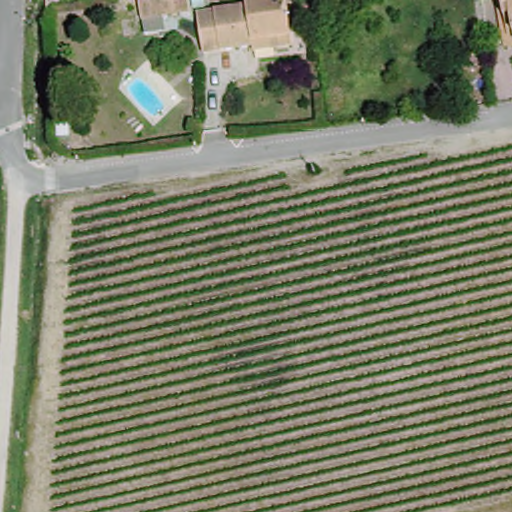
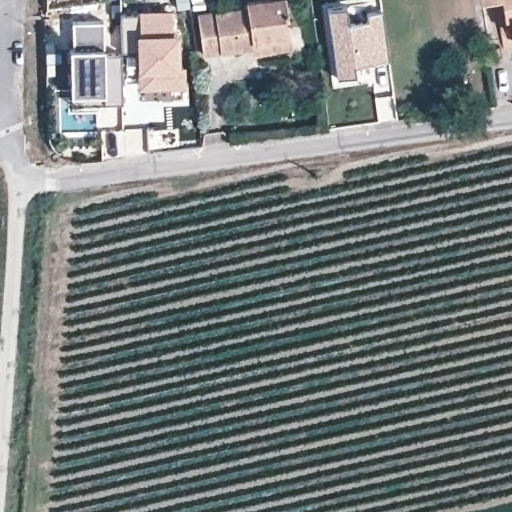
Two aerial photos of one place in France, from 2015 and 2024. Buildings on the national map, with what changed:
demolished [(143,22),(140,0),(180,0),(184,20),(143,22)]
unchanged [(257,43),(211,51),(195,10),(255,4),(254,0),(292,0),(296,30),(298,45),(260,52),(257,43)]
unchanged [(475,0),(492,0),(476,4),(475,0)]
unchanged [(503,32),(500,0),(512,0),(512,40),(505,41),(503,32)]
new [(346,5),(349,23),(368,20),(366,12),(382,10),(389,60),(354,64),(356,74),(337,77),(327,8),(346,5)]
new [(139,14),(138,10),(172,8),(174,32),(179,31),(180,65),(185,65),(187,86),(137,89),(137,71),(137,49),(122,50),(120,15),(139,14)]
new [(102,20),(103,47),(103,55),(121,53),(123,102),(72,102),(71,93),(70,46),(75,47),(73,20),(102,20)]

